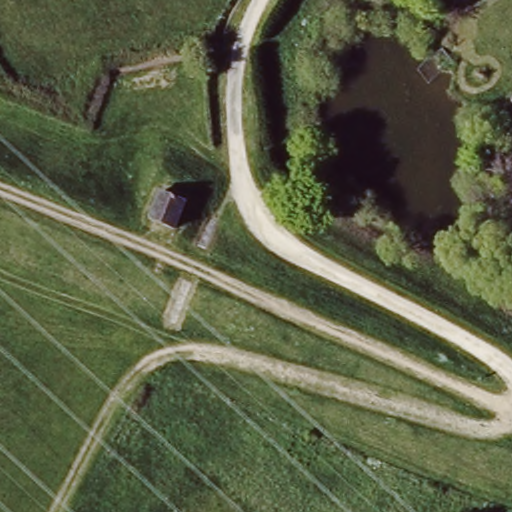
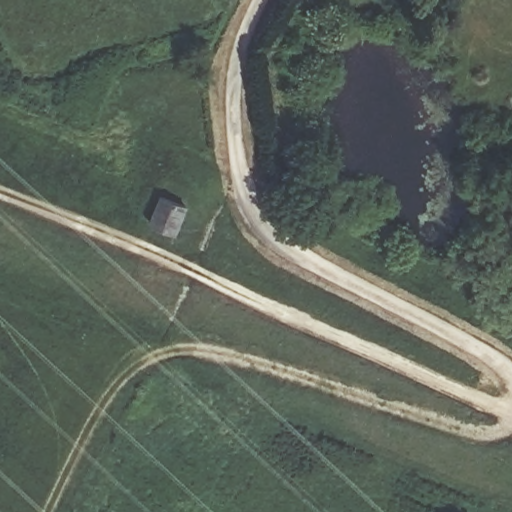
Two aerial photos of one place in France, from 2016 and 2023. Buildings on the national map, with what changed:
unchanged [(160,199),(182,208),(172,233),(150,224),(160,199)]

